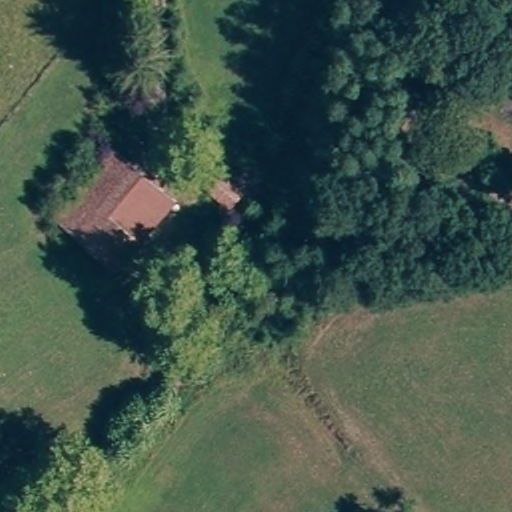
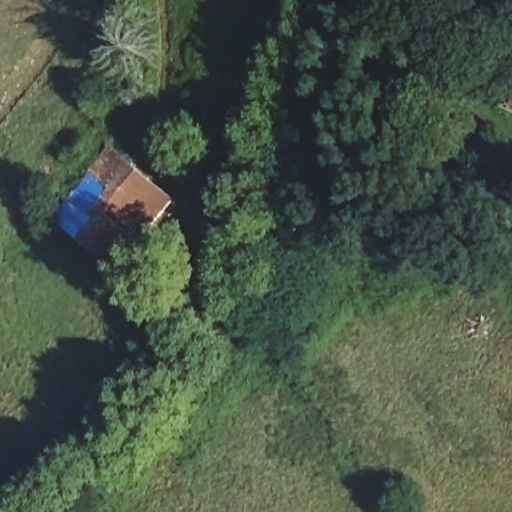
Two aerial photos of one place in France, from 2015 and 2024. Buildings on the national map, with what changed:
unchanged [(251,182),(232,203),(192,165),(207,144),(251,182)]
unchanged [(64,217),(115,150),(176,207),(122,266),(64,217)]

